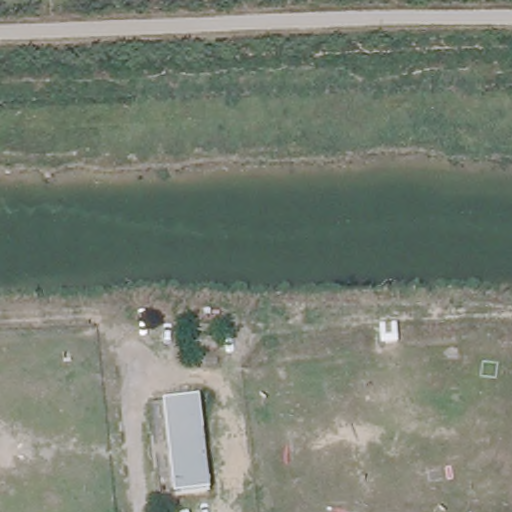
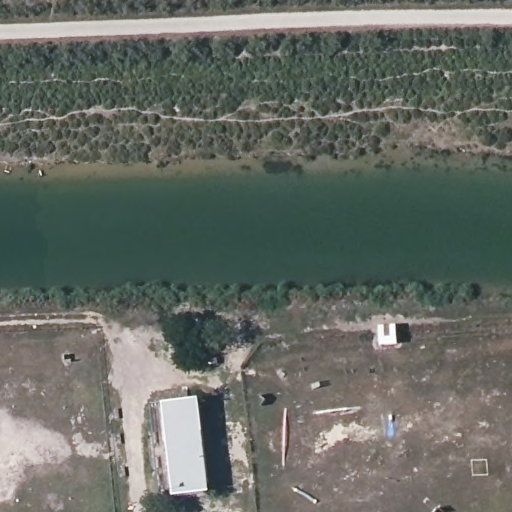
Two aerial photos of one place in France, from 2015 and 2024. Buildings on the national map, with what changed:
unchanged [(373,321),(381,320),(381,308),(387,308),(388,305),(401,305),(402,318),(404,320),(405,333),(374,335),(373,321)]
unchanged [(153,319),(173,321),(171,333),(153,332),(153,319)]
unchanged [(179,323),(213,325),(212,332),(178,331),(179,323)]
unchanged [(178,340),(218,342),(217,349),(178,347),(178,340)]
unchanged [(216,365),(178,364),(178,356),(216,359),(216,365)]
unchanged [(204,392),(213,486),(178,490),(168,396),(204,392)]
unchanged [(168,396),(178,490),(163,491),(153,398),(168,396)]

